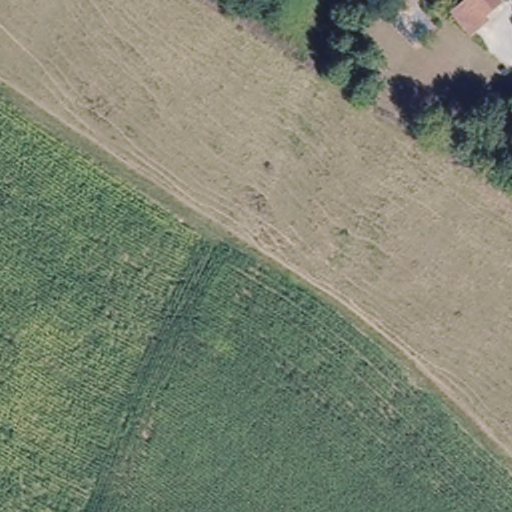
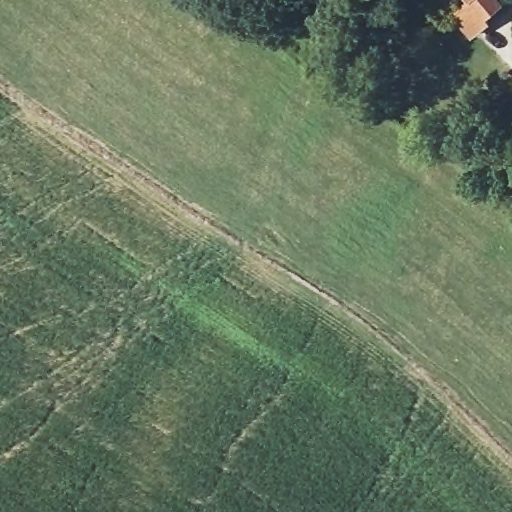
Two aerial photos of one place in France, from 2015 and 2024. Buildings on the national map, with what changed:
unchanged [(459,5),(463,0),(504,0),(479,25),(459,5)]

